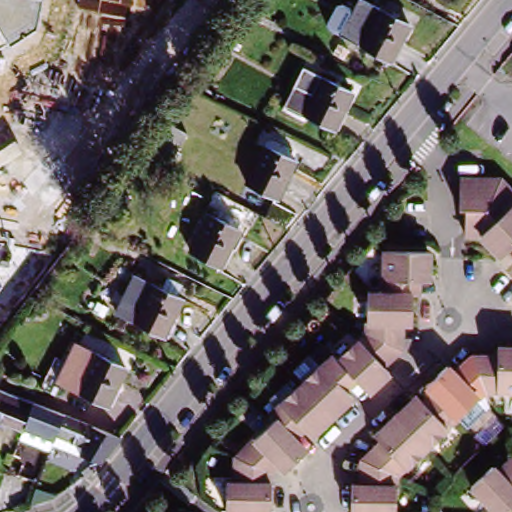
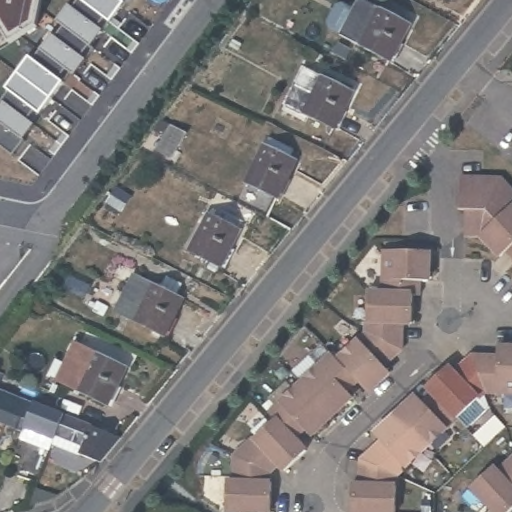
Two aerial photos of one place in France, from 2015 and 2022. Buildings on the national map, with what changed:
unchanged [(9,41),(0,27),(0,0),(41,0),(35,27),(9,41)]
new [(69,4),(72,6),(77,0),(84,0),(112,21),(112,22),(111,21),(92,46),(66,26),(65,27),(63,25),(56,20),(69,4)]
new [(112,21),(84,0),(130,0),(123,8),(123,7),(112,21)]
unchanged [(395,68),(345,40),(364,4),(380,13),(388,16),(414,30),(395,68)]
new [(93,47),(87,55),(90,57),(75,77),(72,75),(72,74),(42,51),(54,34),(55,35),(63,25),(65,27),(66,26),(92,46),(93,47)]
unchanged [(344,60),(334,55),(338,46),(348,51),(344,60)]
new [(72,75),(75,77),(69,85),(66,82),(53,99),(19,74),(31,57),(35,60),(42,51),(72,74),(72,75)]
unchanged [(315,72),(352,91),(332,131),(284,106),(304,66),(315,72)]
new [(34,125),(3,102),(11,91),(7,89),(19,74),(53,99),(34,124),(34,125)]
new [(34,124),(36,125),(25,139),(27,141),(15,157),(0,146),(0,130),(4,125),(0,122),(0,112),(6,104),(34,125),(34,124)]
unchanged [(171,126),(185,134),(171,160),(157,152),(171,126)]
unchanged [(276,200),(245,184),(264,147),(295,162),(276,200)]
unchanged [(461,235),(461,209),(455,209),(456,178),(495,179),(512,196),(512,202),(509,204),(476,236),(461,235)]
unchanged [(512,207),(512,252),(507,247),(496,258),(476,236),(509,204),(512,207)]
unchanged [(186,253),(204,216),(211,219),(214,213),(236,224),(233,230),(215,268),(186,253)]
unchanged [(434,252),(434,263),(433,282),(413,282),(413,294),(389,293),(390,251),(434,252)]
unchanged [(510,263),(512,261),(512,265),(510,263)]
unchanged [(159,342),(129,327),(147,290),(157,294),(162,283),(178,291),(172,302),(177,304),(159,342)]
unchanged [(371,332),(373,293),(389,293),(413,294),(417,294),(417,324),(404,323),(403,329),(402,347),(371,332)]
unchanged [(108,308),(104,318),(93,313),(98,303),(108,308)]
unchanged [(386,363),(394,373),(385,381),(373,392),(358,377),(343,360),(371,332),(402,347),(386,363)]
unchanged [(315,346),(306,357),(297,350),(306,339),(315,346)]
unchanged [(475,357),(498,357),(499,343),(512,344),(512,390),(485,389),(475,357)]
unchanged [(107,405),(58,382),(77,344),(125,368),(107,405)]
unchanged [(348,386),(357,397),(337,416),(306,383),(336,354),(343,360),(358,377),(348,386)]
unchanged [(425,382),(443,365),(446,363),(447,362),(457,371),(472,358),(475,357),(485,389),(456,415),(434,391),(425,382)]
unchanged [(287,401),(281,395),(292,384),(298,391),(306,383),(337,416),(316,436),(306,426),(296,435),(278,418),(274,413),(287,401)]
unchanged [(12,426),(0,422),(0,389),(23,399),(12,426)]
unchanged [(426,443),(395,410),(398,408),(415,391),(425,400),(434,391),(456,415),(426,443)]
unchanged [(269,408),(262,401),(268,395),(275,402),(269,408)]
unchanged [(7,439),(12,426),(23,399),(54,411),(43,438),(37,451),(7,439)]
unchanged [(384,440),(374,430),(395,410),(426,443),(398,471),(366,457),(384,440)]
unchanged [(54,411),(83,422),(111,435),(91,460),(43,438),(54,411)]
unchanged [(465,414),(473,421),(468,426),(461,418),(465,414)]
unchanged [(311,450),(289,471),(280,462),(274,468),(271,471),(240,457),(278,418),(296,435),(311,450)]
unchanged [(505,512),(500,512),(492,504),(471,482),(491,463),(497,469),(512,456),(512,505),(505,512)]
unchanged [(239,482),(240,457),(271,471),(270,483),(276,483),(276,512),(248,512),(231,511),(232,481),(239,482)]
unchanged [(366,481),(366,457),(398,471),(396,512),(385,512),(352,510),(353,480),(366,481)]
unchanged [(431,502),(431,512),(422,512),(422,503),(431,502)]

